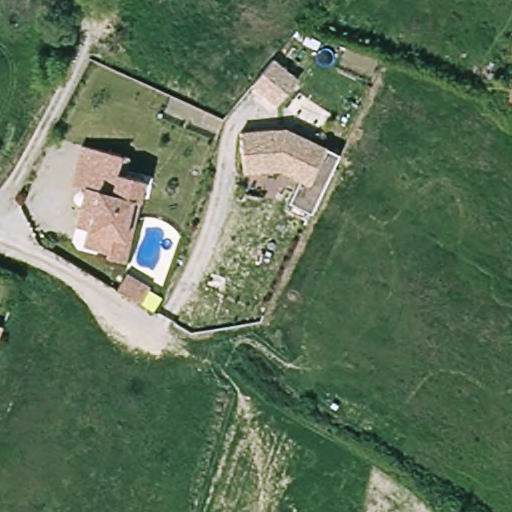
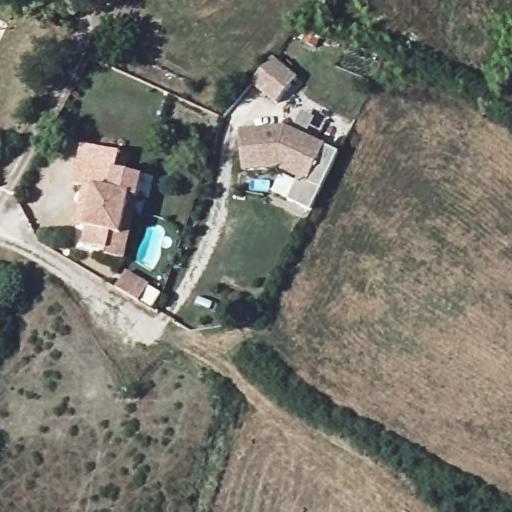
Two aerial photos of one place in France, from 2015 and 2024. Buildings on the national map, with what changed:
unchanged [(278,56),(284,50),(308,69),(289,94),(264,75),(278,56)]
unchanged [(503,97),(512,79),(512,103),(503,97)]
unchanged [(275,171),(240,173),(238,134),(283,130),(323,149),(309,178),(306,185),(275,171)]
unchanged [(103,257),(104,251),(80,246),(84,230),(73,227),(78,207),(82,188),(70,185),(79,145),(118,155),(125,156),(121,174),(140,178),(135,200),(121,261),(103,257)]
unchanged [(133,292),(125,287),(133,271),(157,285),(148,300),(133,292)]
unchanged [(0,327),(2,328),(0,333),(0,327)]

